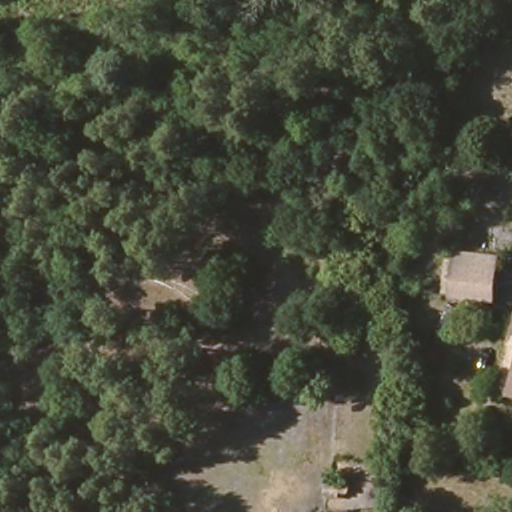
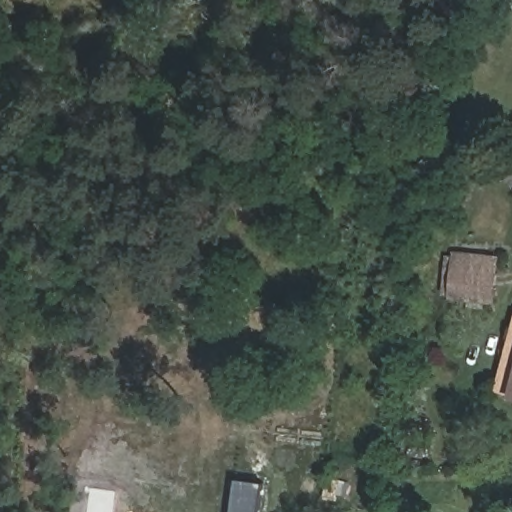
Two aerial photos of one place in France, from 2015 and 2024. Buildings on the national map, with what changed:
unchanged [(440,250),(506,255),(502,303),(436,300),(440,250)]
new [(265,482),(261,512),(231,512),(236,479),(265,482)]

